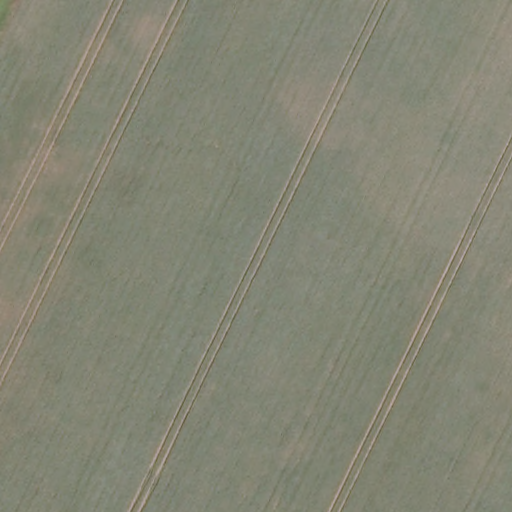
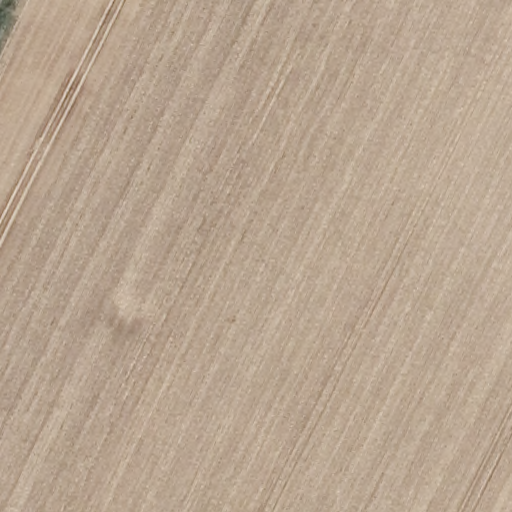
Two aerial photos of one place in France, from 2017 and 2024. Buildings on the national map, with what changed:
[]

